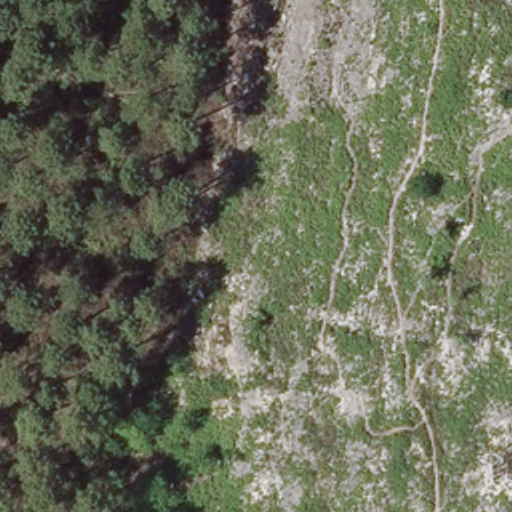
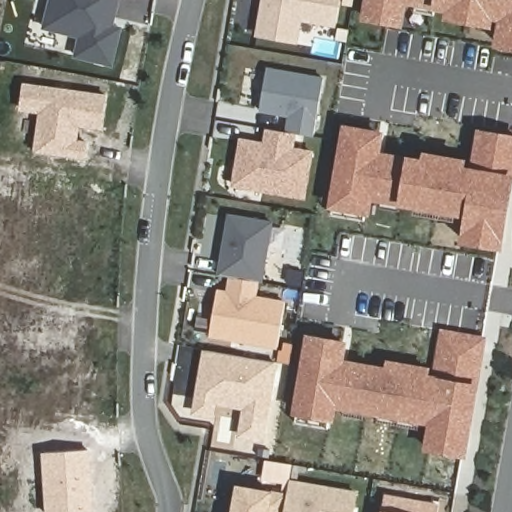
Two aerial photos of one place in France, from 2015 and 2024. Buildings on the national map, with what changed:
new [(102,15),(100,24),(120,29),(111,65),(76,57),(80,37),(44,27),(51,0),(118,0),(114,18),(102,15)]
new [(300,18),(296,41),(258,35),(263,6),(264,0),(338,0),(334,25),(300,18)]
new [(342,2),(343,0),(353,0),(352,4),(342,2)]
new [(500,36),(503,19),(402,1),(400,16),(398,26),(365,20),(367,10),(369,0),(512,0),(512,48),(498,46),(500,36)]
new [(436,7),(434,16),(414,13),(416,3),(436,7)]
new [(490,16),(489,26),(448,19),(450,9),(490,16)]
new [(114,18),(112,27),(100,24),(102,15),(114,18)]
new [(267,70),(323,79),(313,137),(286,132),(290,116),(260,111),(267,70)]
new [(34,152),(37,114),(19,111),(23,82),(108,95),(104,130),(80,127),(78,140),(90,142),(85,160),(34,152)]
new [(294,133),(292,149),(311,152),(304,197),(234,185),(241,140),(257,143),(256,148),(264,149),(267,129),(294,133)]
new [(464,242),(466,232),(469,214),(368,197),(366,212),(364,222),(331,216),(333,206),(346,130),(379,136),(375,162),(510,186),(500,238),(499,248),(464,242)]
new [(512,138),(512,173),(511,179),(474,172),(481,132),(512,138)]
new [(265,144),(264,149),(256,148),(257,143),(265,144)]
new [(423,162),(425,156),(465,163),(463,170),(474,172),(511,179),(510,186),(375,162),(376,154),(423,162)]
new [(456,212),(455,222),(414,215),(416,205),(456,212)]
new [(229,215),(271,222),(261,282),(257,282),(230,277),(218,275),(229,215)]
new [(216,291),(227,292),(230,277),(257,282),(254,297),(285,302),(277,347),(209,335),(216,291)]
new [(482,341),(475,386),(436,380),(444,334),(482,341)]
new [(428,449),(430,439),(432,422),(332,404),(330,419),(328,428),(295,422),(296,413),(310,337),(342,342),(338,369),(473,393),(465,445),(462,455),(428,449)]
new [(242,410),(215,405),(214,418),(192,415),(204,349),(278,362),(265,442),(237,438),(242,410)]
new [(340,362),(380,368),(381,362),(431,372),(430,377),(436,378),(436,380),(475,386),(473,393),(338,369),(340,362)]
new [(90,449),(95,512),(47,512),(42,452),(90,449)]
new [(290,482),(355,493),(352,512),(284,512),(290,482)]
new [(287,495),(284,512),(233,512),(237,487),(287,495)]
new [(437,506),(436,512),(383,512),(386,496),(437,506)]

